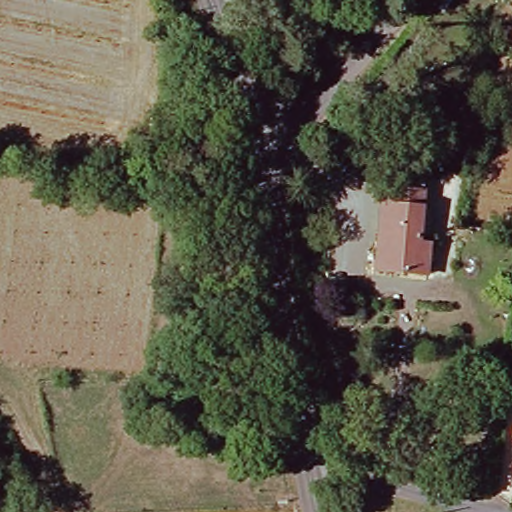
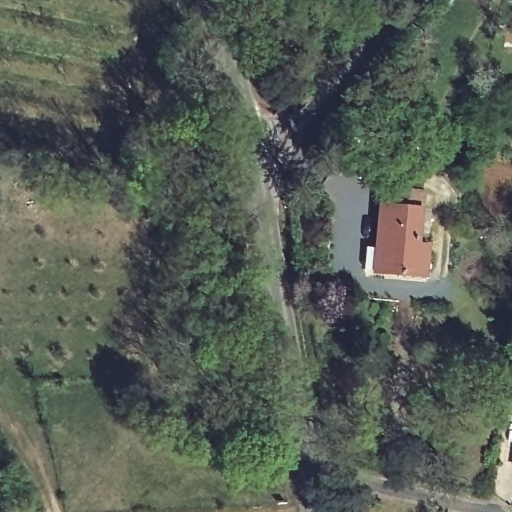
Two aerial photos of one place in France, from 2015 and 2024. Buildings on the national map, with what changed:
unchanged [(381,243),(383,201),(398,201),(400,189),(428,191),(426,237),(434,237),(433,272),(387,272),(379,271),(381,243)]

